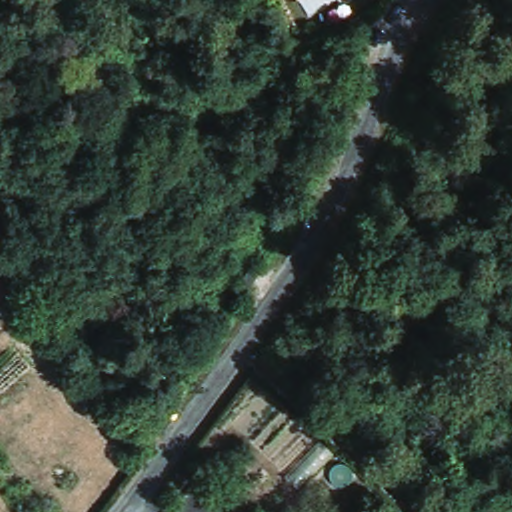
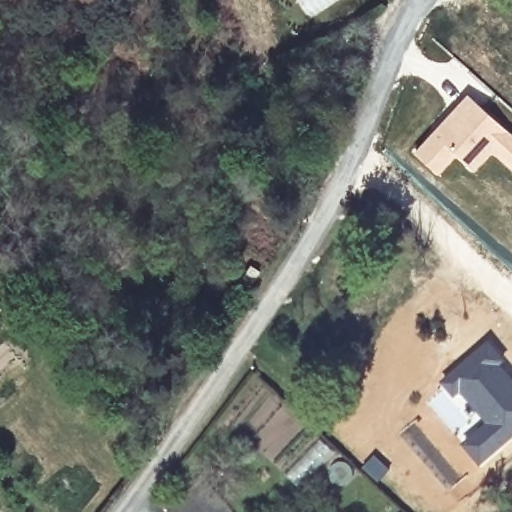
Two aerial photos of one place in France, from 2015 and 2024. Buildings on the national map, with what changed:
new [(456,154),(437,175),(413,152),(467,94),(512,135),(512,172),(491,151),(473,169),(456,154)]
unchanged [(1,334),(0,333),(0,296),(20,317),(1,334)]
new [(489,339),(512,369),(512,437),(478,465),(461,442),(483,422),(461,395),(455,400),(439,382),(489,339)]

